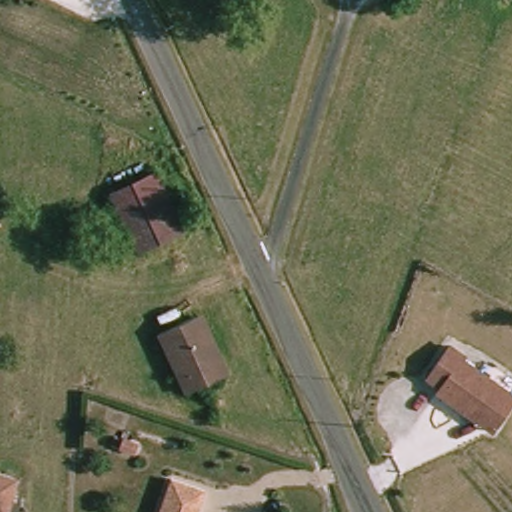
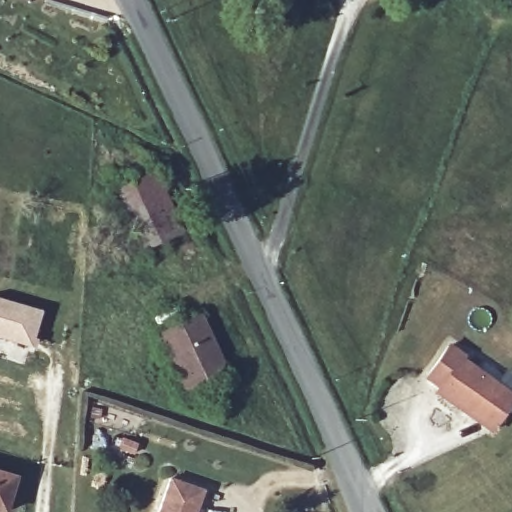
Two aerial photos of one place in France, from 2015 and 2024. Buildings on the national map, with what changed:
unchanged [(113,190),(160,171),(189,231),(140,252),(113,190)]
new [(29,344),(0,334),(0,299),(40,309),(29,344)]
unchanged [(205,311),(233,372),(226,375),(190,390),(163,329),(200,313),(205,311)]
unchanged [(464,414),(437,394),(439,390),(427,381),(449,348),(465,359),(462,362),(512,397),(512,406),(495,429),(492,434),(464,414)]
unchanged [(176,472),(209,483),(199,512),(162,512),(176,472)]
unchanged [(10,509),(0,506),(0,473),(19,478),(10,509)]

